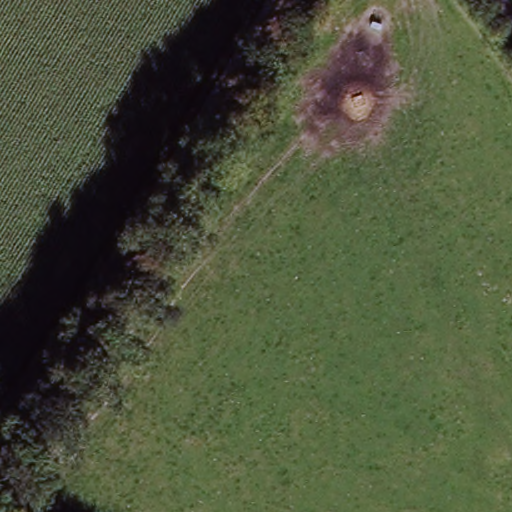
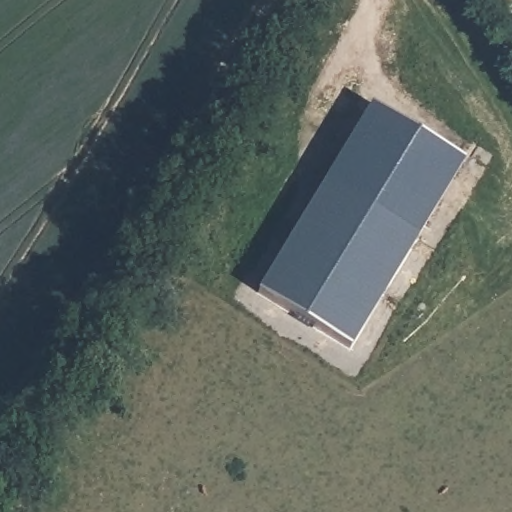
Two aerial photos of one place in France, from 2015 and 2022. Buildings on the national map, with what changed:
new [(373,111),(463,160),(348,350),(260,295),(373,111)]

